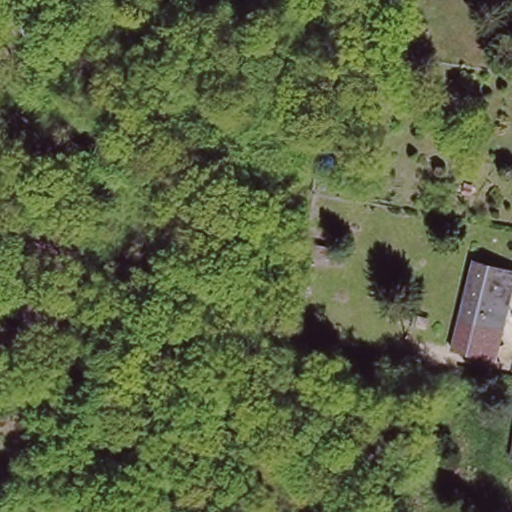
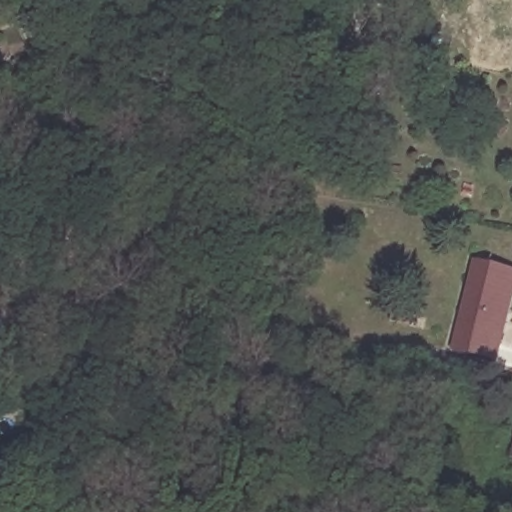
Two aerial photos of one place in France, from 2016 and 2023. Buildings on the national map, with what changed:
unchanged [(299,237),(316,239),(316,249),(298,247),(299,237)]
unchanged [(474,262),(512,271),(512,283),(511,287),(501,331),(493,362),(452,353),(474,262)]
unchanged [(509,457),(512,441),(512,458),(509,457)]

